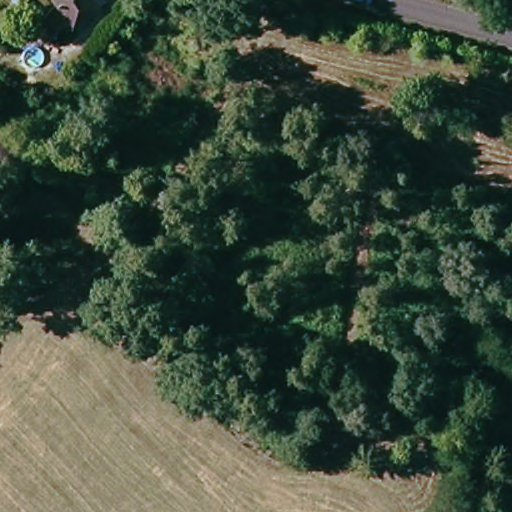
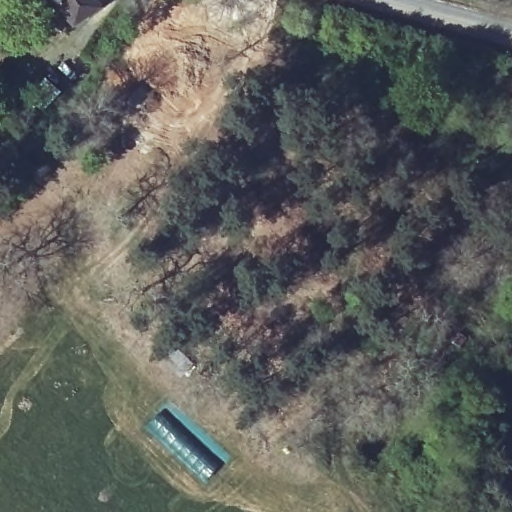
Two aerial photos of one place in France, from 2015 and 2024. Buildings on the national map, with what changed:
unchanged [(105,7),(77,28),(56,0),(57,0),(100,0),(105,7)]

